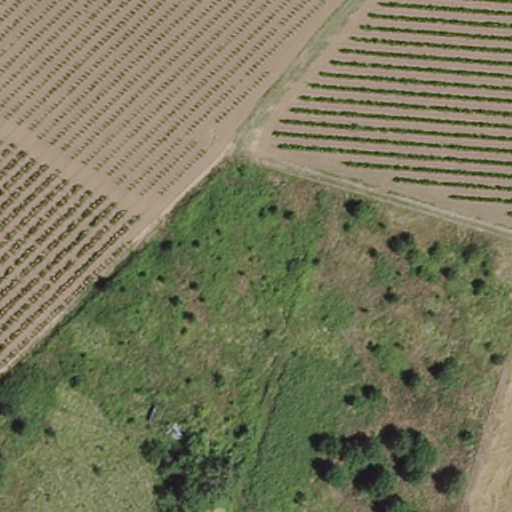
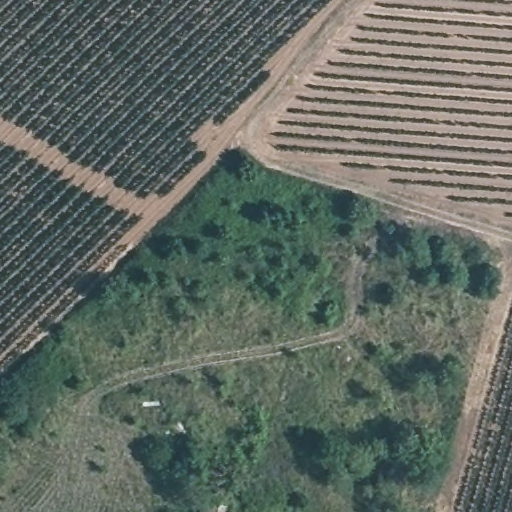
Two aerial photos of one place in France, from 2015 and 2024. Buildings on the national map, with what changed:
unchanged [(205,499),(228,504),(226,512),(201,512),(205,499)]

